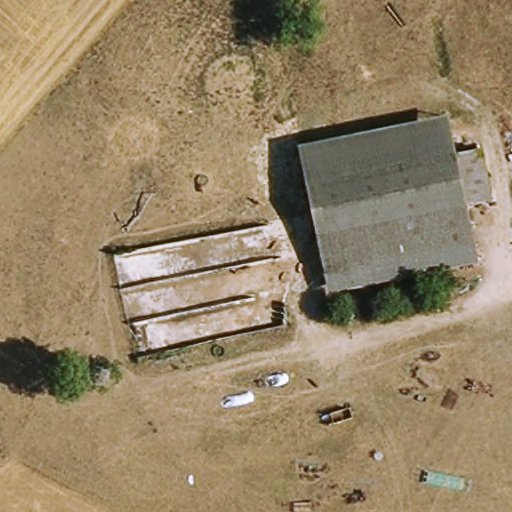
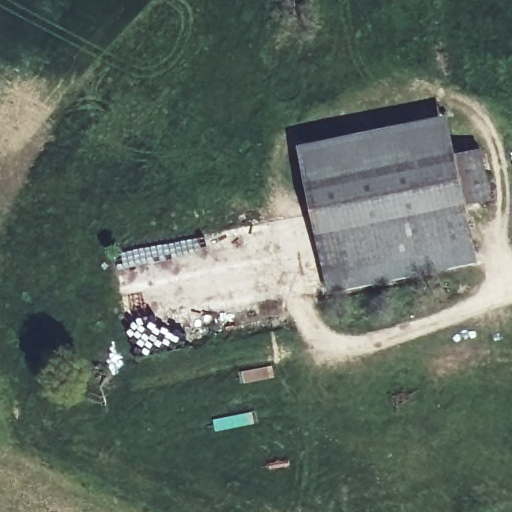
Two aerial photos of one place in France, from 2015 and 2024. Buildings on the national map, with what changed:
unchanged [(303,140),(334,134),(449,114),(455,153),(463,201),(472,257),(371,274),(326,280),(316,217),(314,204),(303,140)]
unchanged [(481,149),(488,197),(463,201),(455,153),(481,149)]

